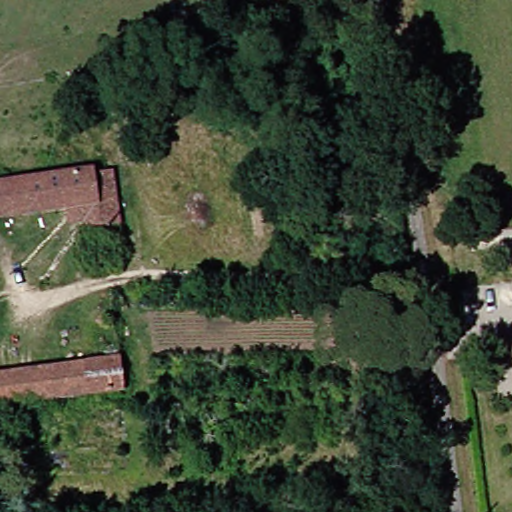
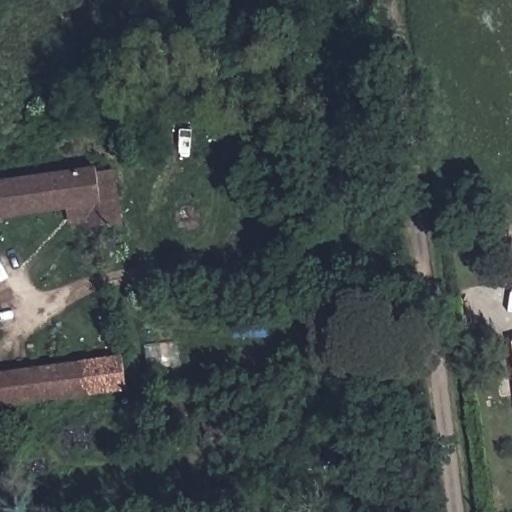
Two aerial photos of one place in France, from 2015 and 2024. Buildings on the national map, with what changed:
unchanged [(101,170),(101,173),(118,170),(126,224),(108,227),(108,225),(94,228),(93,221),(76,223),(74,208),(0,219),(0,184),(101,170)]
unchanged [(98,396),(94,364),(115,362),(113,347),(125,344),(132,392),(98,396)]
unchanged [(94,364),(98,396),(0,410),(0,377),(94,364)]
unchanged [(1,470),(0,470),(0,443),(6,450),(1,470)]

